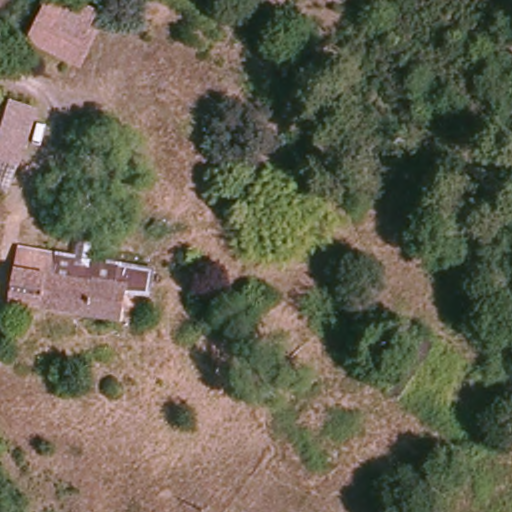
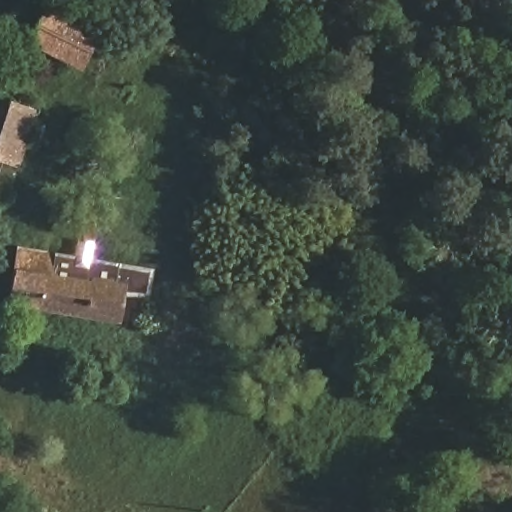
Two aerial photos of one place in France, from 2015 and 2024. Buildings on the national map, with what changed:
unchanged [(50,0),(74,0),(97,9),(75,62),(30,47),(50,0)]
unchanged [(0,191),(0,99),(39,110),(7,194),(0,191)]
unchanged [(20,247),(77,254),(81,237),(94,239),(92,257),(154,269),(151,295),(126,295),(121,321),(9,305),(20,247)]
unchanged [(420,339),(432,343),(398,400),(387,393),(420,339)]

